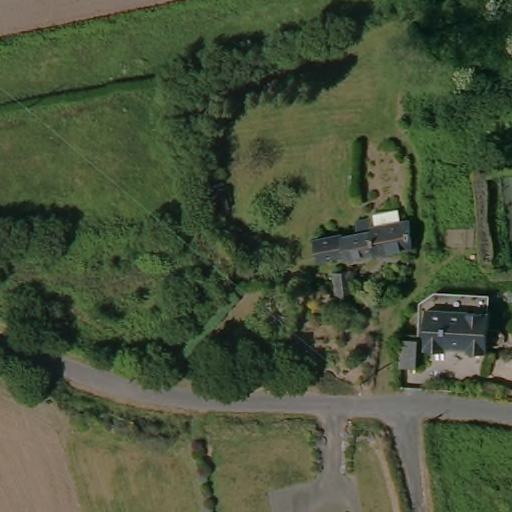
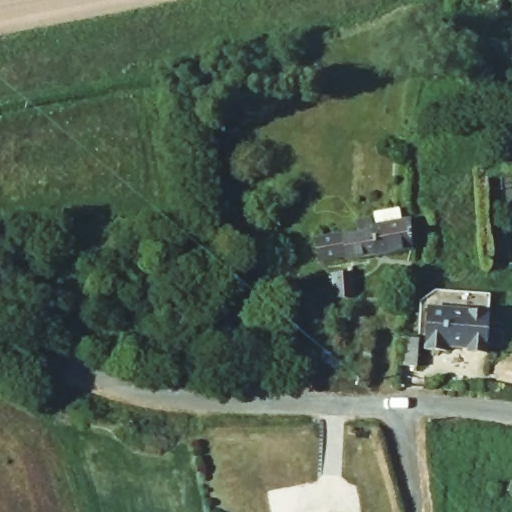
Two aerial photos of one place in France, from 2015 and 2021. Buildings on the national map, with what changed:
unchanged [(232,205),(221,207),(218,185),(229,184),(232,205)]
unchanged [(319,235),(347,231),(349,230),(357,230),(356,220),(368,217),(369,228),(389,226),(407,224),(408,251),(382,254),(349,258),(349,256),(322,259),(319,235)]
unchanged [(356,290),(339,290),(338,263),(354,263),(356,290)]
unchanged [(378,283),(378,290),(377,290),(367,290),(368,283),(378,283)]
unchanged [(487,304),(486,319),(486,324),(484,323),(483,347),(467,346),(467,340),(442,340),(441,345),(426,343),(426,321),(427,303),(487,304)]

